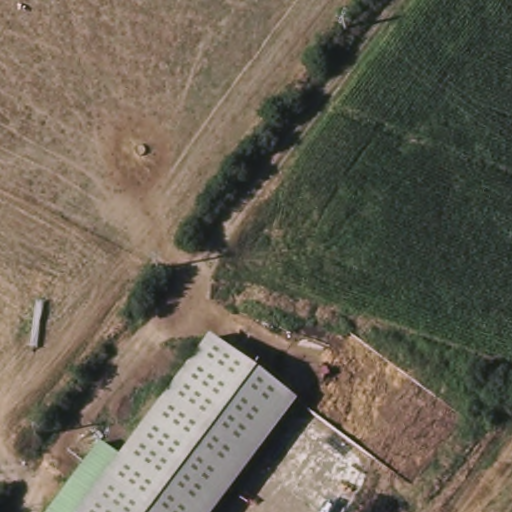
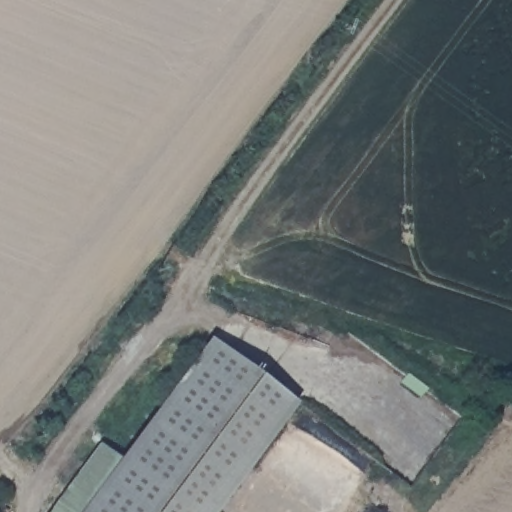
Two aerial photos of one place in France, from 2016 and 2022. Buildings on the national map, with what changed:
unchanged [(251,365),(304,403),(224,512),(88,512),(217,339),(251,365)]
unchanged [(75,512),(58,512),(64,505),(75,512)]

